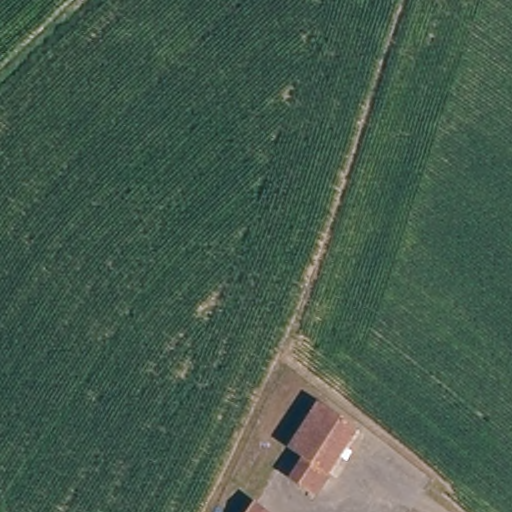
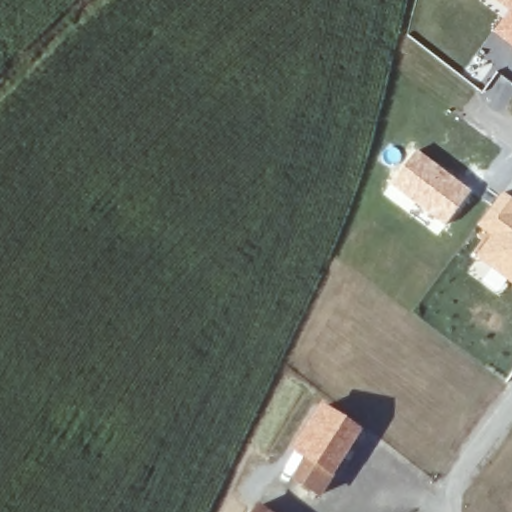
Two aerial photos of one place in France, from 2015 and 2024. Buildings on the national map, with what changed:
new [(506,9),(495,0),(512,0),(512,45),(490,30),(506,9)]
new [(416,150),(470,191),(443,227),(389,186),(416,150)]
new [(512,212),(512,278),(499,296),(467,273),(495,236),(481,224),(501,196),(512,202),(512,212)]
unchanged [(359,432),(317,496),(292,480),(306,459),(293,449),(321,407),(359,432)]
unchanged [(259,508),(264,512),(256,512),(259,508)]

